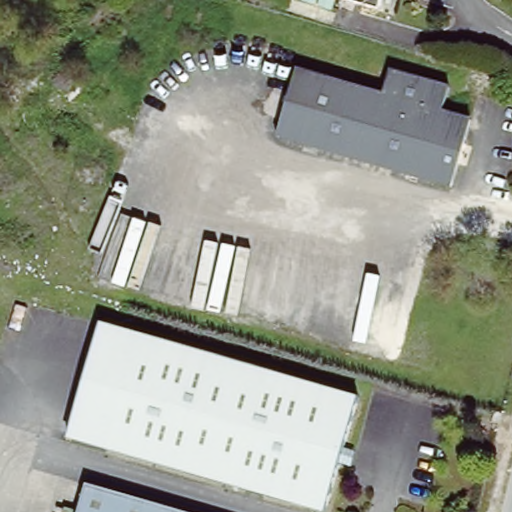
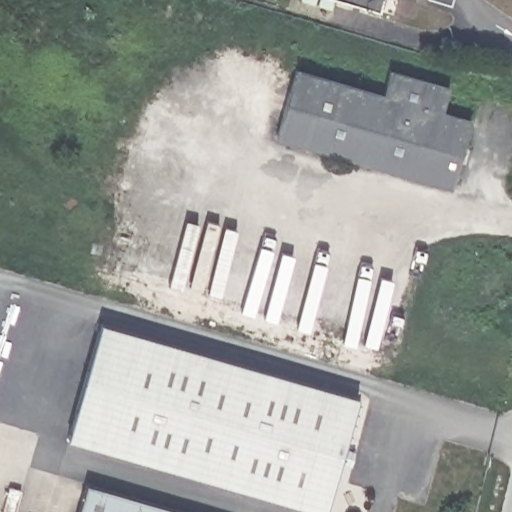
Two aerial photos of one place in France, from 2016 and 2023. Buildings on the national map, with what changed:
unchanged [(380,10),(346,0),(383,0),(380,10)]
unchanged [(382,97),(390,71),(450,89),(442,115),(469,123),(449,188),(277,136),(296,71),(382,97)]
unchanged [(492,280),(507,283),(503,297),(488,293),(492,280)]
unchanged [(355,400),(325,512),(307,512),(63,440),(96,326),(355,400)]
unchanged [(491,424),(493,418),(502,420),(500,427),(491,424)]
unchanged [(180,512),(75,512),(83,484),(180,512)]

